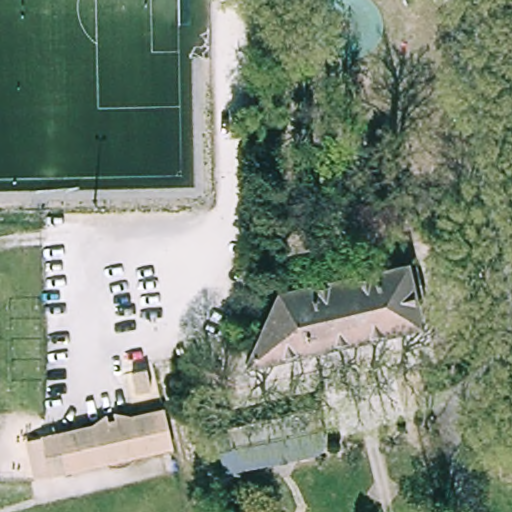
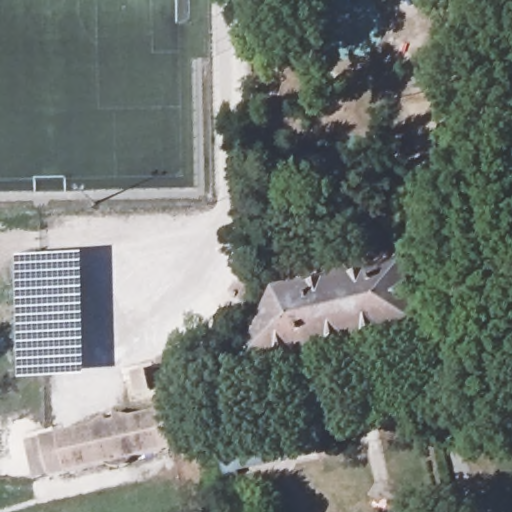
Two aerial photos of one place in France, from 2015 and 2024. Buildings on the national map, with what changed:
new [(22,380),(18,259),(85,257),(90,378),(22,380)]
unchanged [(402,266),(416,327),(242,365),(275,294),(402,266)]
unchanged [(222,438),(228,436),(227,427),(314,406),(321,443),(315,455),(236,471),(237,474),(225,477),(222,478),(215,440),(217,438),(222,438)]
unchanged [(137,416),(168,410),(177,449),(71,472),(62,433),(98,425),(111,415),(112,422),(121,420),(120,413),(137,416)]
new [(71,472),(32,483),(23,442),(62,433),(71,472)]

